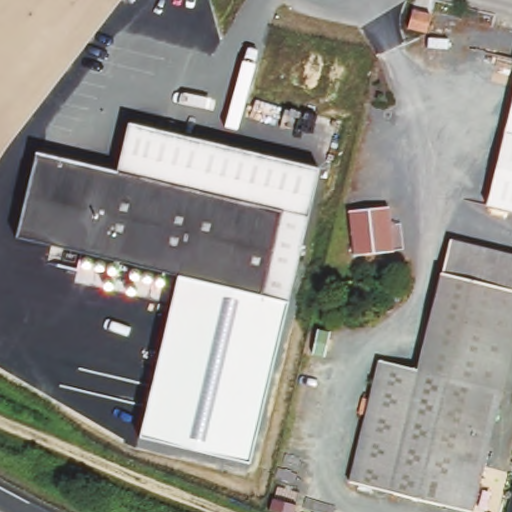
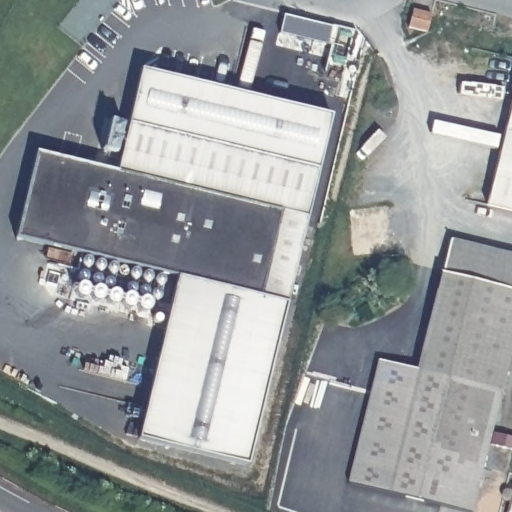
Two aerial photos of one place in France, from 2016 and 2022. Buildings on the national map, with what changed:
unchanged [(426,10),(423,25),(407,21),(411,5),(426,10)]
new [(129,124),(142,69),(331,115),(317,170),(129,124)]
unchanged [(512,98),(512,212),(486,205),(512,98)]
unchanged [(129,124),(320,171),(303,216),(117,174),(129,124)]
unchanged [(117,174),(303,216),(285,301),(14,240),(33,155),(117,174)]
unchanged [(395,251),(352,255),(347,210),(390,207),(395,251)]
unchanged [(374,352),(416,363),(440,267),(447,235),(512,250),(512,348),(502,391),(416,370),(386,495),(345,483),(374,352)]
unchanged [(285,301),(250,463),(141,435),(177,276),(285,301)]
unchanged [(476,512),(455,512),(386,495),(416,370),(502,391),(476,512)]

